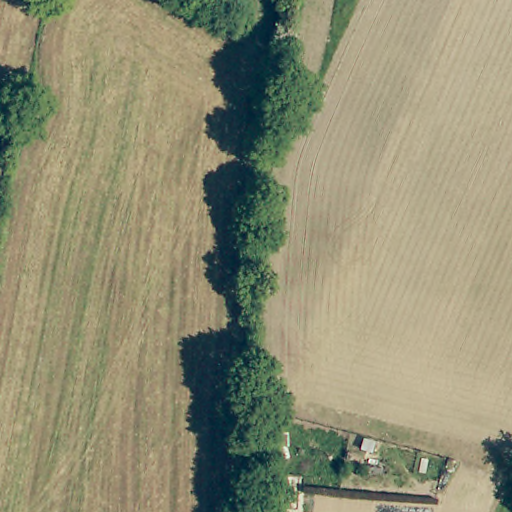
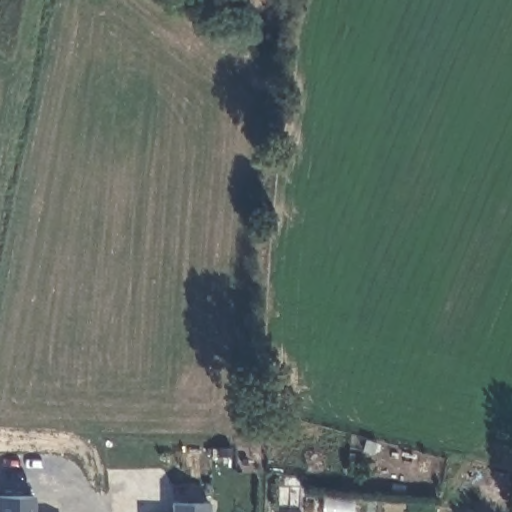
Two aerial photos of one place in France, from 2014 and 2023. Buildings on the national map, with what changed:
new [(33,512),(0,512),(0,495),(33,494),(33,512)]
new [(171,512),(171,503),(210,503),(209,512),(171,512)]

